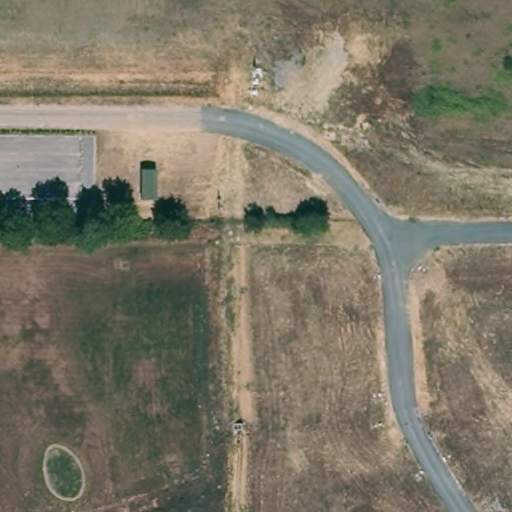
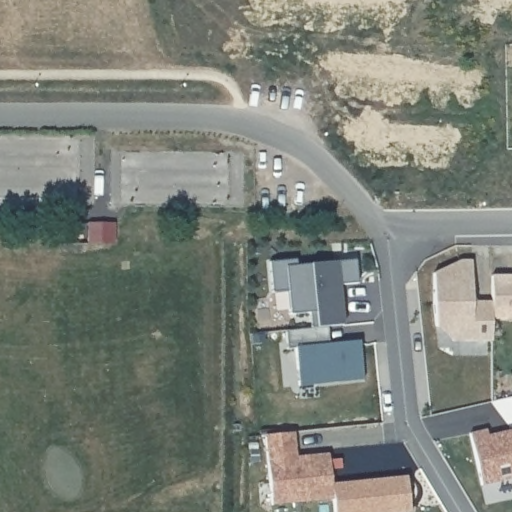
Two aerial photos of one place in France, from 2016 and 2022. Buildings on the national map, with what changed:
new [(308,313),(288,315),(286,292),(270,293),(267,263),(294,260),(295,266),(354,260),(356,284),(338,286),(342,325),(326,327),(328,345),(359,341),(362,379),(297,386),(294,349),(286,349),(285,331),(309,328),(308,313)]
new [(433,304),(432,273),(459,261),(470,261),(470,302),(491,302),(491,319),(491,341),(452,341),(435,326),(433,304)]
new [(491,276),(508,276),(508,279),(512,279),(512,319),(491,319),(491,302),(491,276)]
new [(486,436),(512,431),(512,479),(480,486),(469,434),(485,431),(486,436)]
new [(264,434),(294,432),(296,456),(327,453),(330,484),(331,498),(271,504),(264,434)]
new [(409,512),(333,512),(330,484),(405,477),(409,512)]

